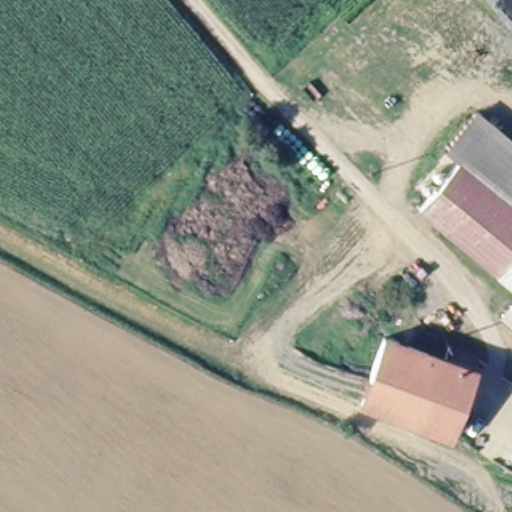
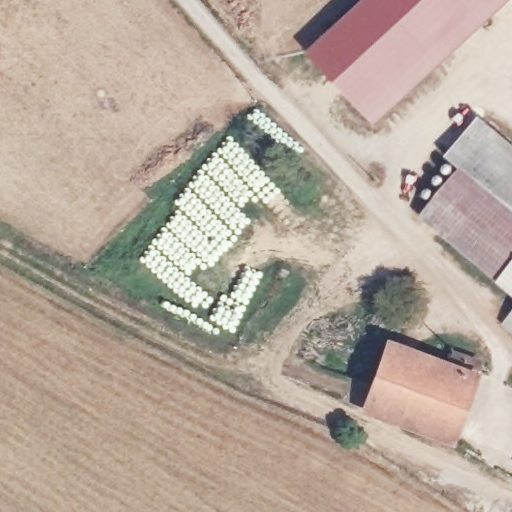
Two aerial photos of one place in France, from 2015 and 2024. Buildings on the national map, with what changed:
new [(310,52),(366,0),(512,0),(512,1),(375,125),(310,52)]
unchanged [(512,153),(512,218),(458,174),(444,162),(476,123),(512,153)]
unchanged [(512,271),(497,286),(418,221),(458,174),(512,218),(512,271)]
unchanged [(512,298),(497,286),(512,271),(512,298)]
unchanged [(512,316),(512,337),(502,328),(512,316)]
unchanged [(365,415),(391,350),(453,375),(458,361),(478,372),(448,446),(365,415)]

